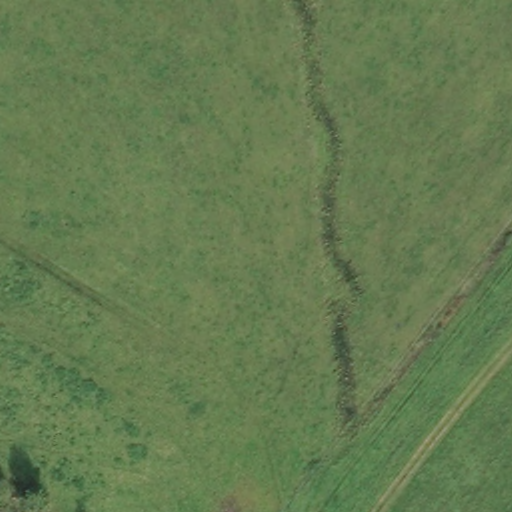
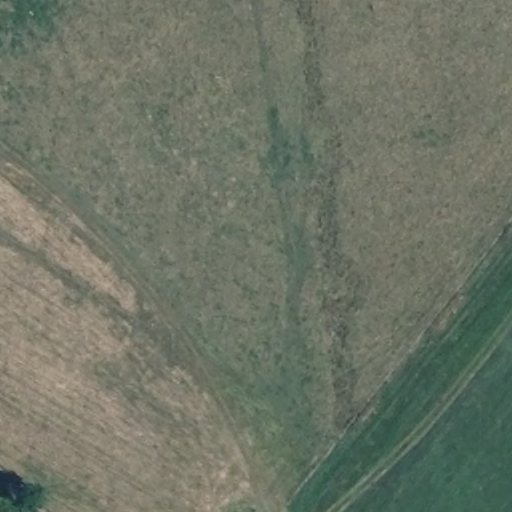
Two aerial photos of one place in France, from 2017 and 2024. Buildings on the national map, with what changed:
[]

